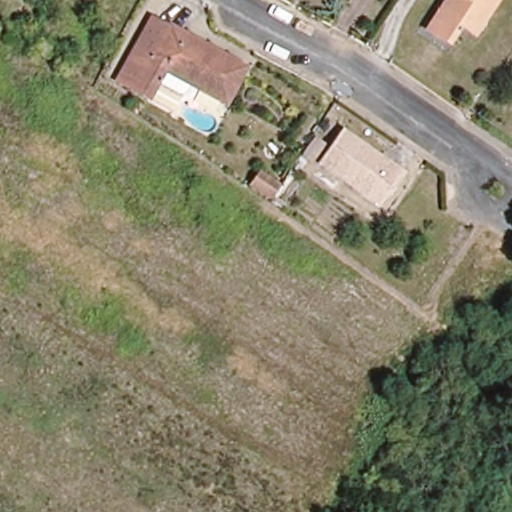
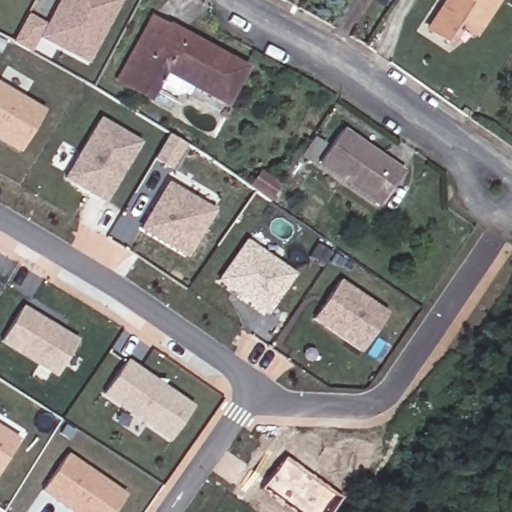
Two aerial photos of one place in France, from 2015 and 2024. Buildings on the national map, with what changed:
new [(30,53),(12,42),(26,14),(45,25),(59,0),(122,0),(87,64),(38,39),(30,53)]
unchanged [(469,35),(457,25),(444,44),(424,30),(444,0),(492,0),(469,35)]
unchanged [(184,82),(180,90),(170,93),(152,83),(145,96),(112,76),(149,11),(240,64),(220,101),(184,82)]
demolished [(25,47),(11,39),(17,30),(31,36),(25,47)]
new [(0,137),(0,84),(48,112),(25,152),(0,137)]
new [(110,203),(70,180),(105,120),(145,144),(110,203)]
unchanged [(402,169),(379,202),(318,160),(341,128),(402,169)]
new [(174,170),(158,159),(173,135),(189,145),(174,170)]
demolished [(247,189),(230,177),(238,165),(256,176),(247,189)]
new [(270,196),(253,185),(261,172),(278,184),(270,196)]
new [(190,257),(146,230),(173,185),(217,212),(190,257)]
new [(250,242),(299,276),(272,315),(223,282),(250,242)]
new [(343,281),(391,315),(366,352),(317,320),(343,281)]
new [(62,377),(5,343),(26,310),(82,343),(62,377)]
new [(175,442),(107,395),(131,362),(198,410),(175,442)]
new [(167,387),(159,382),(160,380),(171,381),(167,387)]
new [(0,479),(0,427),(24,442),(0,479)]
new [(75,512),(46,492),(71,456),(131,496),(120,512),(75,512)]

